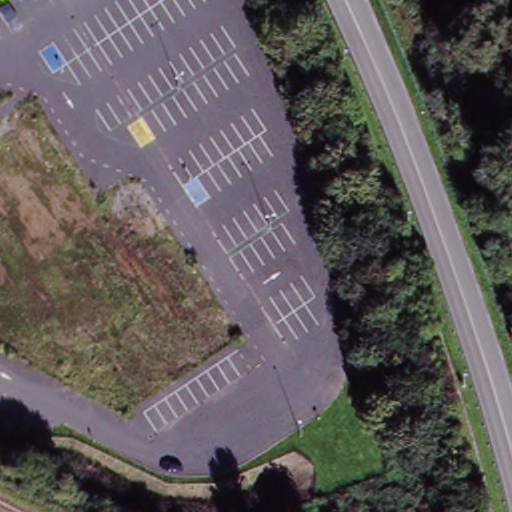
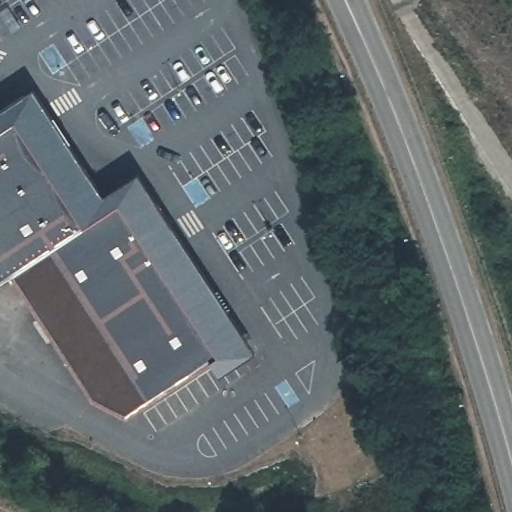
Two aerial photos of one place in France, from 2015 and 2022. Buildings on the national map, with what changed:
new [(126,414),(92,398),(12,274),(0,282),(0,109),(35,87),(103,194),(139,171),(245,335),(209,359),(126,414)]

